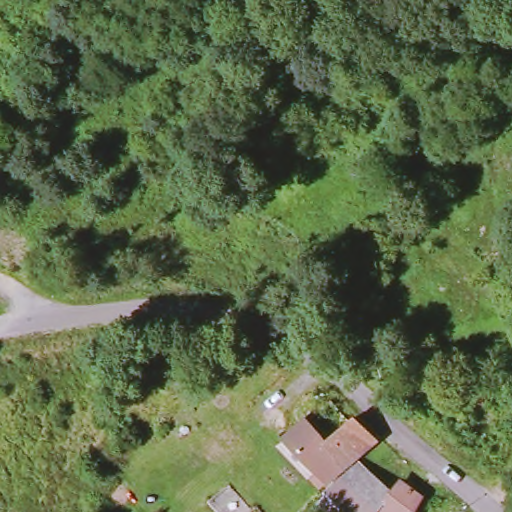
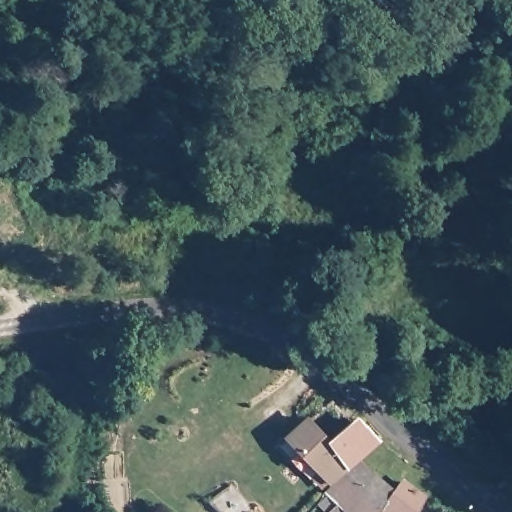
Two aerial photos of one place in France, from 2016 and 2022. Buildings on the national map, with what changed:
unchanged [(326,441),(354,418),(374,441),(344,467),(336,458),(317,473),(286,437),(306,419),(326,441)]
unchanged [(377,512),(343,512),(324,492),(359,460),(381,482),(391,492),(400,478),(421,496),(412,512),(384,512),(380,508),(377,512)]

